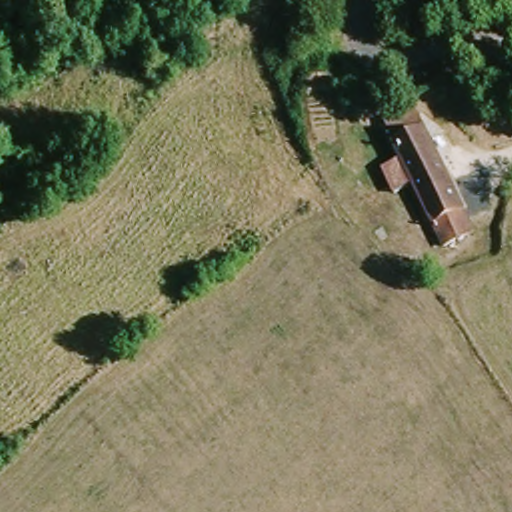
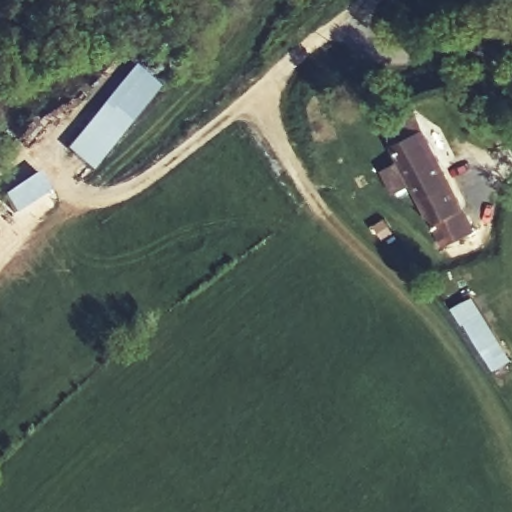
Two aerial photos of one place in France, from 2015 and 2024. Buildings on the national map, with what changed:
new [(161,84),(92,170),(66,149),(136,64),(161,84)]
unchanged [(390,147),(418,135),(467,239),(438,252),(390,147)]

